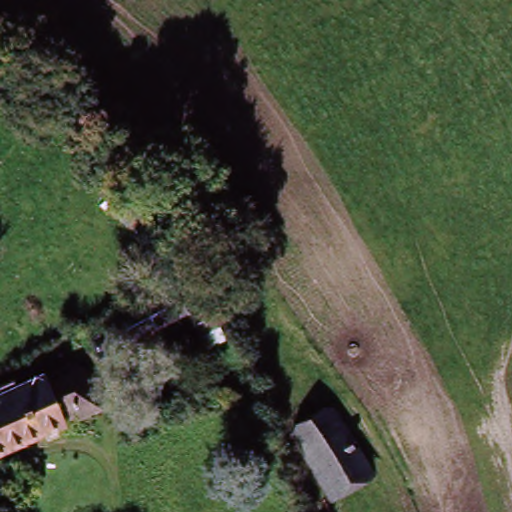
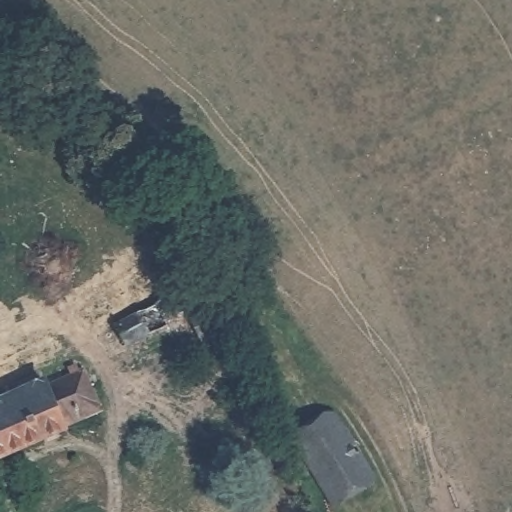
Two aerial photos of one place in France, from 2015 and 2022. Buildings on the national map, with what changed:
unchanged [(136,238),(110,209),(127,192),(155,221),(136,238)]
unchanged [(235,329),(207,343),(197,321),(210,316),(198,291),(216,283),(235,329)]
unchanged [(178,292),(190,315),(136,344),(124,320),(178,292)]
unchanged [(47,387),(82,372),(99,411),(0,456),(0,400),(44,380),(47,387)]
unchanged [(316,420),(360,478),(330,502),(286,443),(316,420)]

